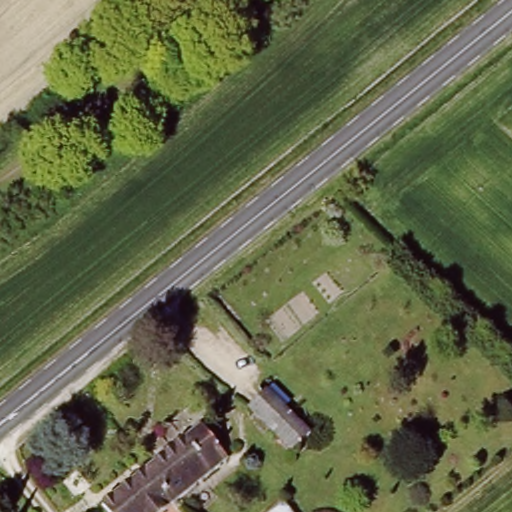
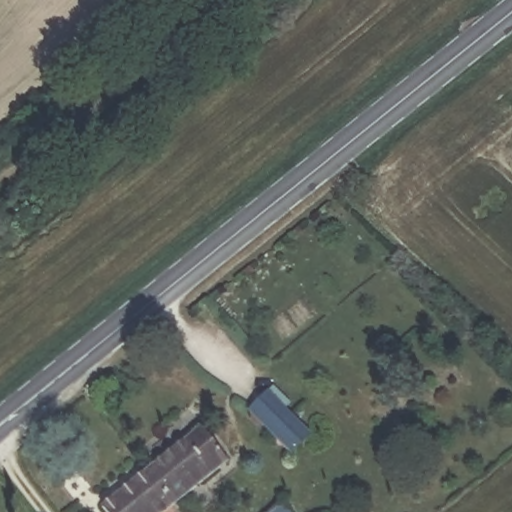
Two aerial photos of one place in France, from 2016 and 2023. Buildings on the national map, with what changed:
unchanged [(309,430),(289,451),(245,407),(264,387),(309,430)]
unchanged [(206,428),(230,462),(171,501),(144,468),(206,428)]
unchanged [(171,501),(154,512),(110,512),(100,498),(144,468),(171,501)]

